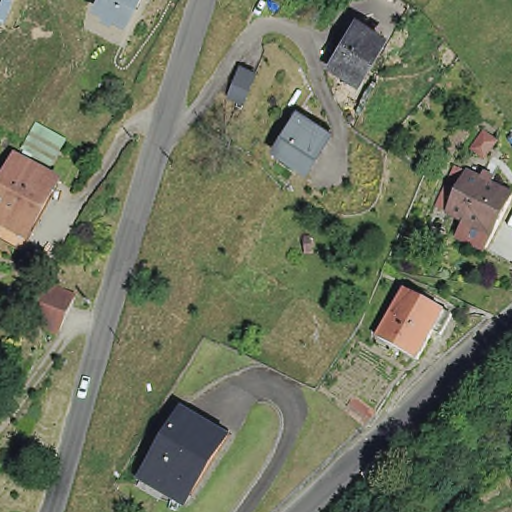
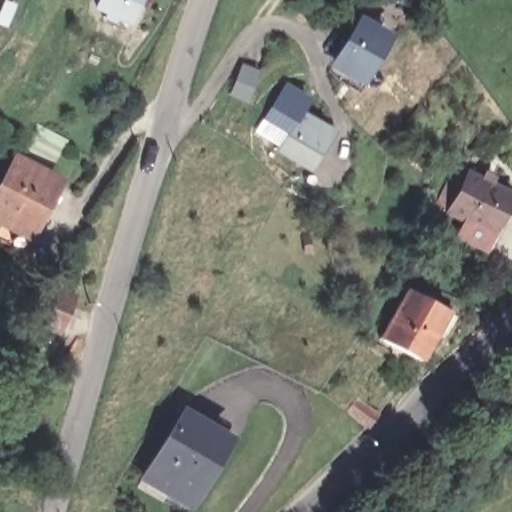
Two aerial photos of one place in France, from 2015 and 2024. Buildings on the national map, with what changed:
unchanged [(116,23),(96,12),(102,0),(141,0),(127,28),(116,23)]
unchanged [(354,82),(328,67),(351,29),(377,44),(354,82)]
unchanged [(240,66),(256,73),(244,101),(227,94),(240,66)]
unchanged [(329,128),(306,166),(277,148),(297,114),(319,127),(321,123),(329,128)]
unchanged [(45,175),(20,161),(38,127),(63,141),(62,143),(45,175)]
unchanged [(0,227),(2,224),(0,223),(0,183),(15,158),(16,159),(20,161),(45,175),(57,181),(26,236),(17,251),(0,242),(0,227)]
unchanged [(479,205),(469,206),(451,208),(444,208),(461,175),(504,197),(501,203),(479,205)]
unchanged [(451,237),(457,222),(441,214),(444,208),(451,208),(469,206),(479,205),(501,203),(484,236),(477,250),(451,237)]
unchanged [(64,332),(44,324),(39,322),(35,320),(50,283),(56,285),(80,294),(74,308),(64,332)]
unchanged [(409,364),(368,342),(396,294),(442,319),(432,338),(425,335),(409,364)]
unchanged [(354,399),(376,416),(364,431),(342,413),(354,399)]
unchanged [(168,424),(176,412),(217,439),(209,453),(177,501),(156,488),(150,497),(129,484),(135,474),(168,424)]

